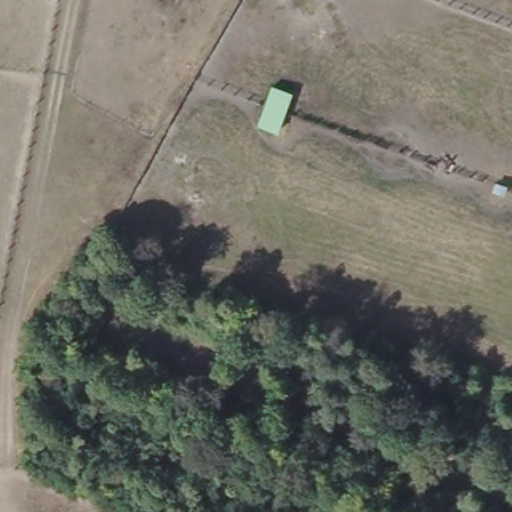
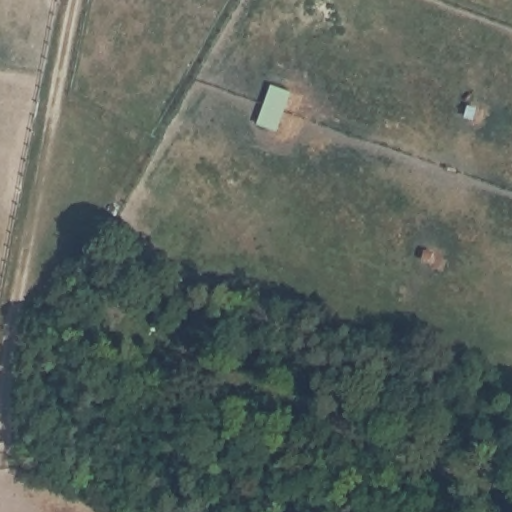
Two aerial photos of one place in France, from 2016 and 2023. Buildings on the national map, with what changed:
unchanged [(292,91),(278,129),(260,123),(273,85),(292,91)]

